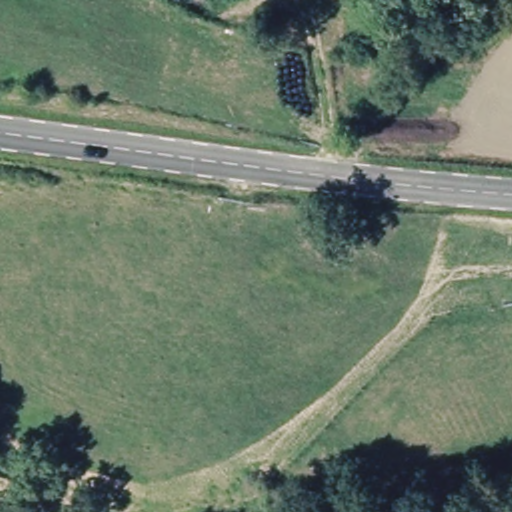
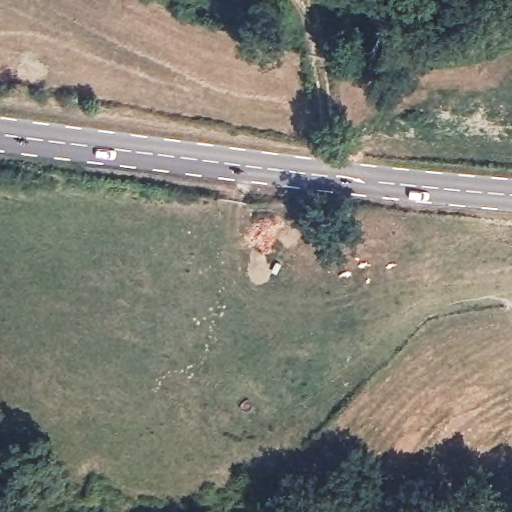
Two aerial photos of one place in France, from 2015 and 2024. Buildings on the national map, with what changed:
[]

